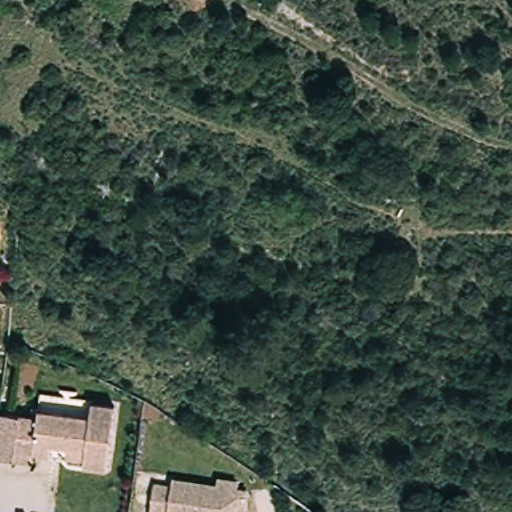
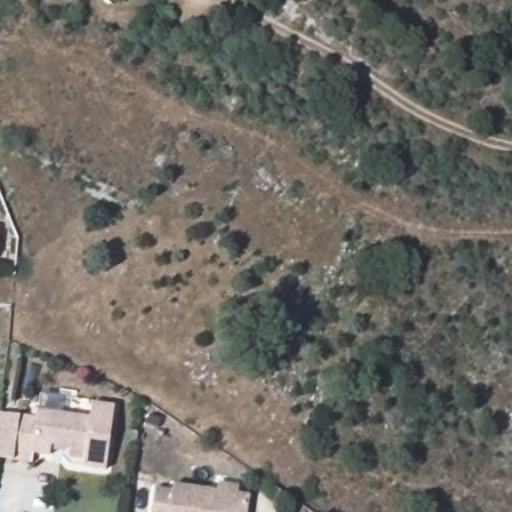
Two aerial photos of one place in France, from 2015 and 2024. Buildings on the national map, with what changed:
unchanged [(56,447),(55,457),(37,454),(36,464),(16,462),(0,460),(0,443),(3,417),(41,421),(43,413),(95,421),(96,406),(118,409),(110,472),(88,469),(89,461),(71,459),(72,449),(56,447)]
unchanged [(155,492),(171,494),(173,487),(248,498),(246,512),(152,512),(155,492)]

